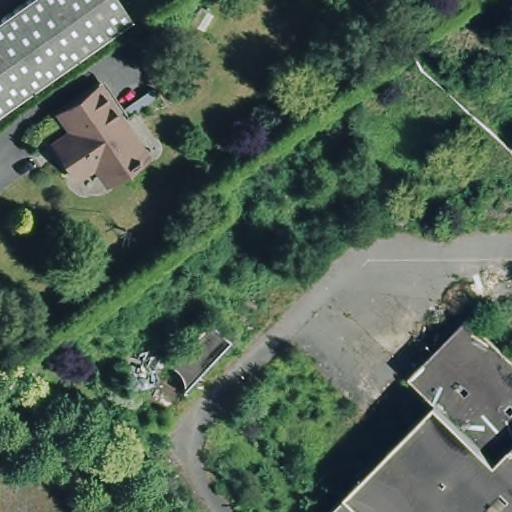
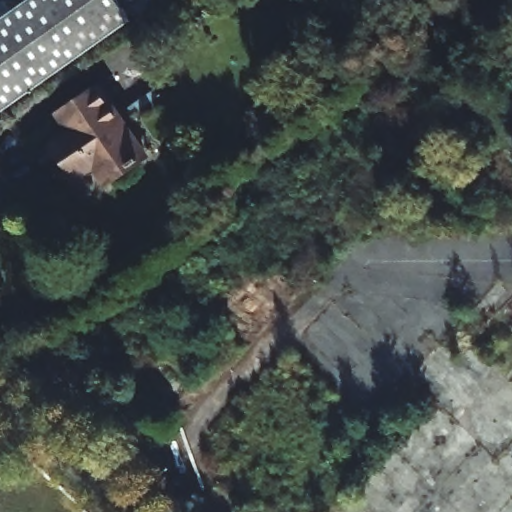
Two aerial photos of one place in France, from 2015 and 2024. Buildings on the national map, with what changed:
unchanged [(132,19),(79,56),(0,112),(0,20),(29,0),(119,0),(132,19)]
unchanged [(61,140),(72,131),(59,114),(99,85),(147,152),(106,180),(96,167),(78,180),(62,157),(54,145),(61,140)]
demolished [(324,512),(431,401),(406,376),(465,316),(512,363),(512,512),(324,512)]
demolished [(236,350),(187,402),(184,405),(180,406),(177,407),(172,407),(170,407),(166,406),(162,404),(160,402),(159,400),(157,398),(156,396),(155,393),(154,389),(154,387),(155,383),(155,381),(157,378),(157,377),(159,375),(161,373),(162,371),(165,370),(169,369),(211,325),(236,350)]

